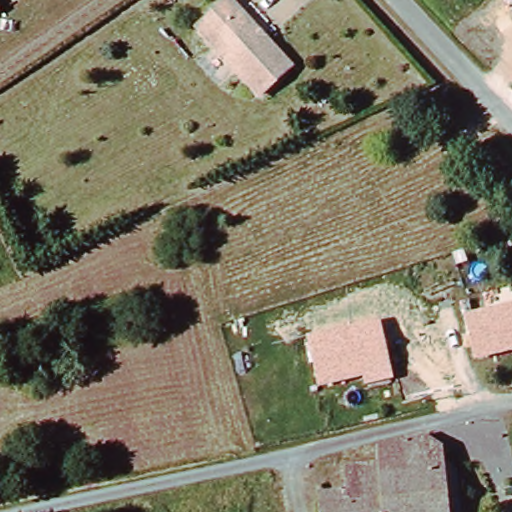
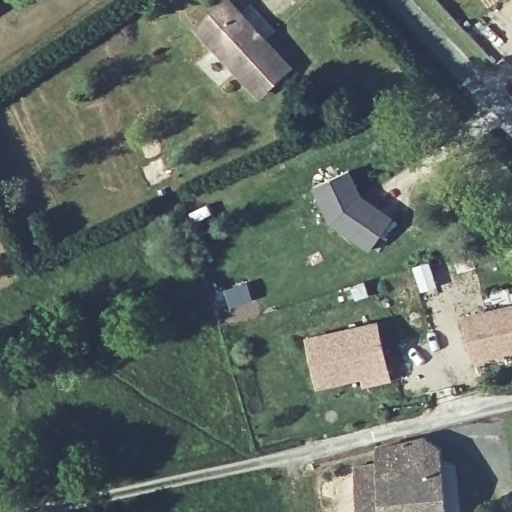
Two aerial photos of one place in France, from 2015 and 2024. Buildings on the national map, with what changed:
unchanged [(287,63),(257,91),(193,24),(219,0),(225,0),(287,63)]
new [(351,170),(364,198),(392,216),(370,249),(329,221),(315,188),(351,170)]
unchanged [(473,360),(463,315),(512,304),(512,352),(473,360)]
unchanged [(318,388),(307,336),(380,321),(392,380),(363,386),(363,378),(318,388)]
unchanged [(404,479),(403,451),(378,456),(378,446),(424,436),(442,444),(447,512),(437,512),(437,478),(404,479)]
unchanged [(344,503),(345,472),(379,469),(378,456),(403,451),(404,479),(437,478),(437,512),(321,512),(321,505),(344,503)]

